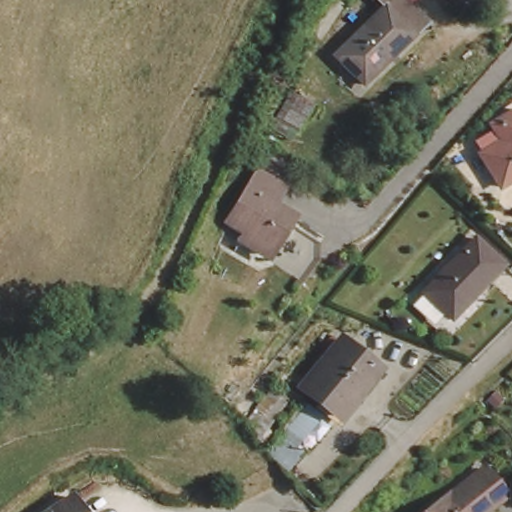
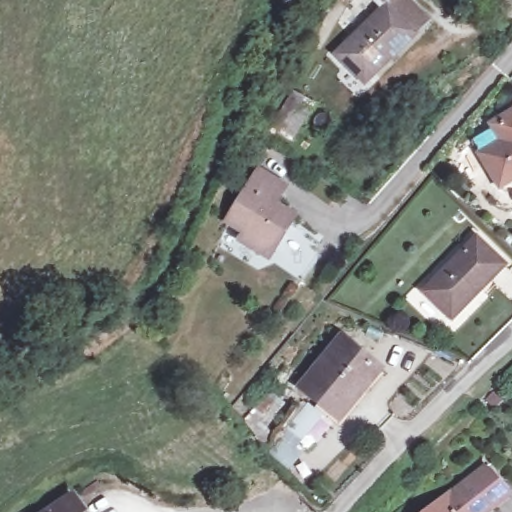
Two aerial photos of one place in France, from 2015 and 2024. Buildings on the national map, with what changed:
unchanged [(388,5),(383,0),(409,0),(430,22),(377,72),(349,42),(388,5)]
unchanged [(305,100),(319,108),(307,128),(293,120),(305,100)]
unchanged [(502,187),(484,156),(495,149),(490,140),(507,130),(503,125),(512,120),(512,182),(502,187)]
unchanged [(246,162),(273,178),(262,196),(283,208),(279,216),(265,239),(250,247),(228,233),(232,225),(215,214),(246,162)]
unchanged [(309,234),(308,250),(292,273),(263,254),(284,219),(309,234)]
unchanged [(459,314),(430,291),(474,238),(502,262),(459,314)]
unchanged [(349,416),(317,394),(305,385),(340,336),(352,345),(384,367),(349,416)]
unchanged [(330,413),(290,465),(281,455),(319,406),(330,413)]
unchanged [(507,491),(481,512),(480,512),(460,487),(487,465),(507,491)]
unchanged [(480,512),(429,512),(460,487),(480,512)]
unchanged [(87,512),(50,512),(75,496),(87,512)]

